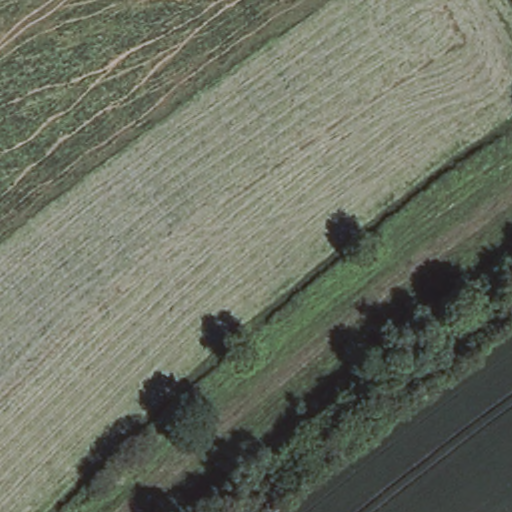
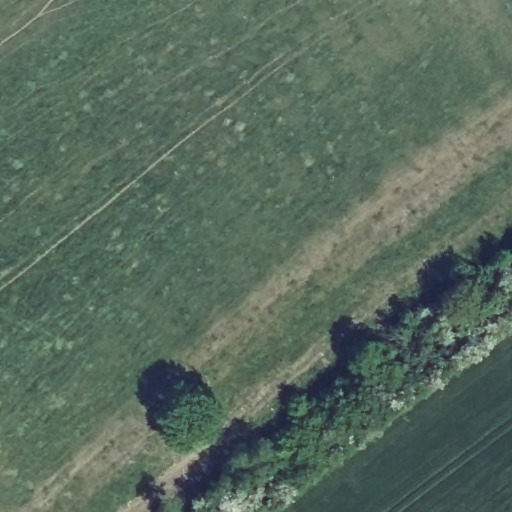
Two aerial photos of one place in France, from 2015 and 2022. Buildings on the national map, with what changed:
[]

